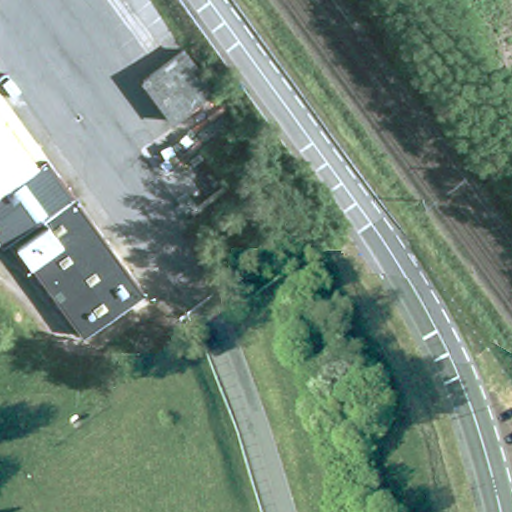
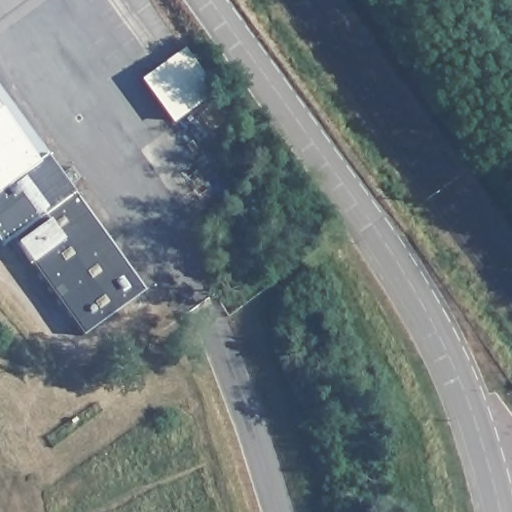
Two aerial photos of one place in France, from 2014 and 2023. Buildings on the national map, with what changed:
unchanged [(139,79),(179,50),(210,91),(169,120),(139,79)]
unchanged [(0,108),(0,91),(44,154),(36,160),(0,108)]
unchanged [(36,160),(44,154),(141,292),(80,334),(9,239),(0,246),(0,108),(36,160)]

